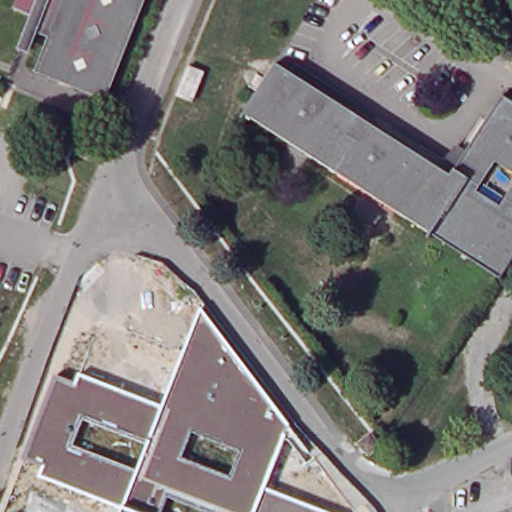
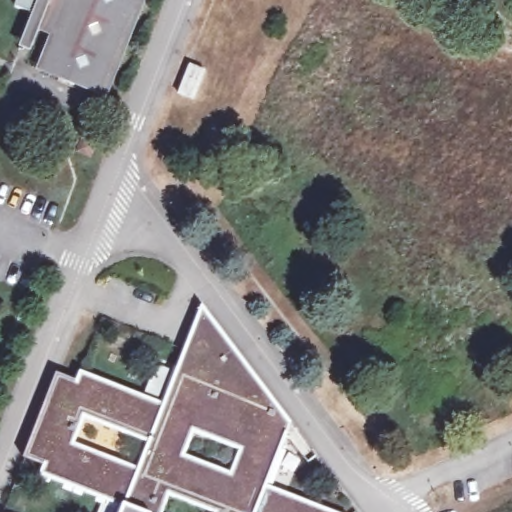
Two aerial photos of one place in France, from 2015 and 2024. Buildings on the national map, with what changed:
unchanged [(23,39),(28,27),(25,26),(29,16),(30,17),(34,8),(16,1),(16,0),(142,0),(108,87),(41,62),(51,30),(38,24),(30,41),(23,39)]
demolished [(291,71),(359,114),(371,122),(453,174),(504,94),(512,99),(512,168),(499,160),(479,191),(503,206),(512,191),(512,263),(503,277),(391,205),(354,182),(311,154),(290,141),(247,114),(279,63),(291,71)]
unchanged [(204,70),(194,99),(181,94),(191,65),(204,70)]
demolished [(3,95),(0,102),(0,94),(3,95)]
unchanged [(39,475),(43,467),(28,461),(59,378),(76,385),(81,373),(163,406),(203,309),(289,426),(264,488),(327,512),(120,512),(121,508),(39,475)]

